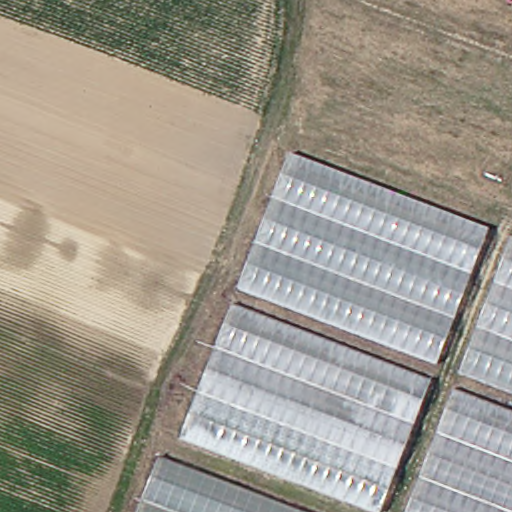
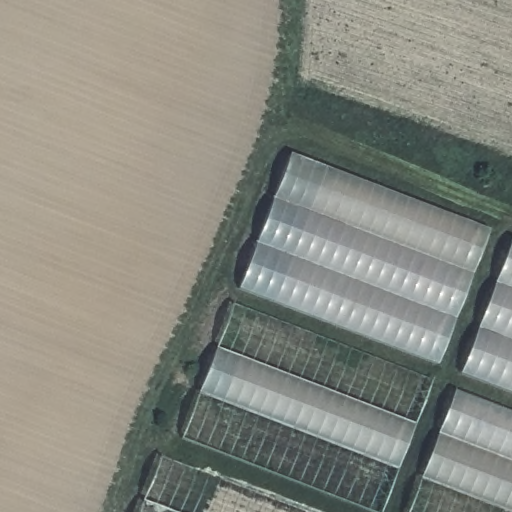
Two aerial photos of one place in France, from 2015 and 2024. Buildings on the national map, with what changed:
unchanged [(290,154),(488,230),(438,364),(239,287),(290,154)]
unchanged [(512,393),(461,374),(512,241),(512,393)]
unchanged [(233,307),(430,381),(382,512),(373,512),(183,437),(233,307)]
unchanged [(512,414),(512,512),(407,512),(454,392),(512,414)]
unchanged [(307,512),(139,512),(160,457),(307,512)]

